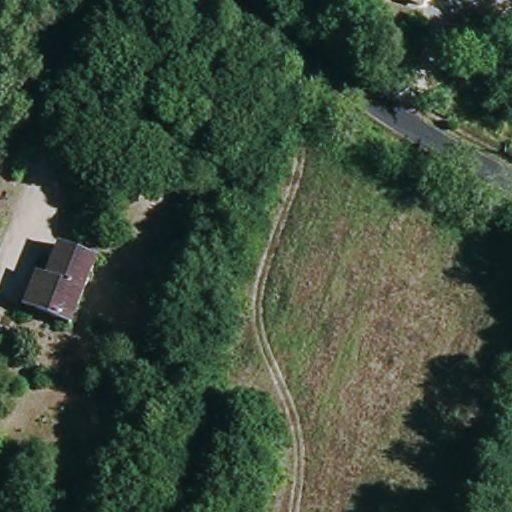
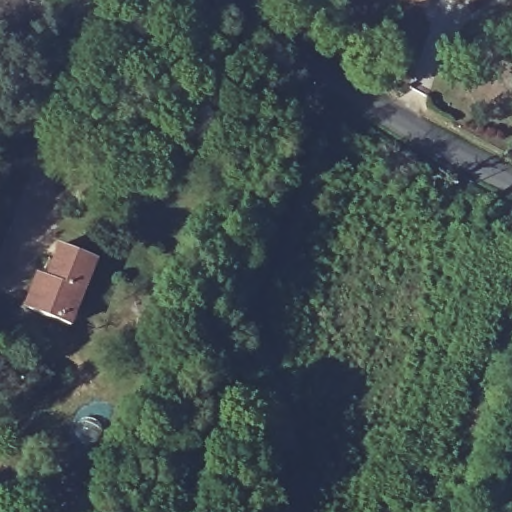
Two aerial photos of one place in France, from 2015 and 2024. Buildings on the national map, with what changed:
unchanged [(414,0),(424,0),(423,4),(414,0)]
unchanged [(28,308),(41,275),(46,276),(54,256),(61,259),(66,248),(99,260),(74,325),(28,308)]

